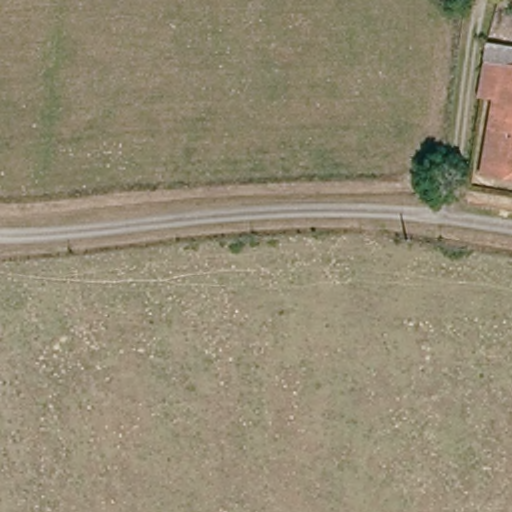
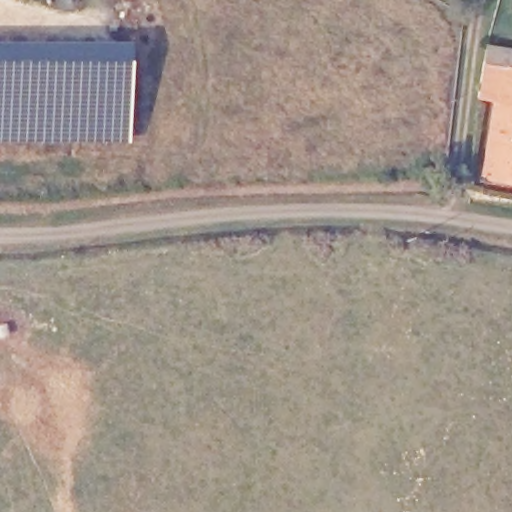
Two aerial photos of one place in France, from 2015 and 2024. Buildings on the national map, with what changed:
new [(128,145),(0,145),(0,44),(127,43),(128,145)]
unchanged [(495,97),(479,95),(484,60),(487,45),(512,50),(512,187),(481,181),(495,97)]

